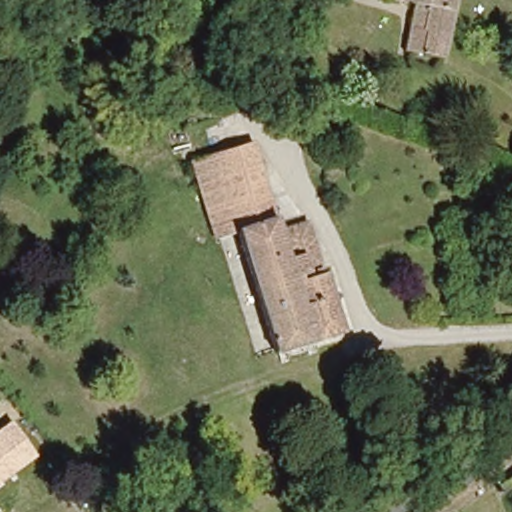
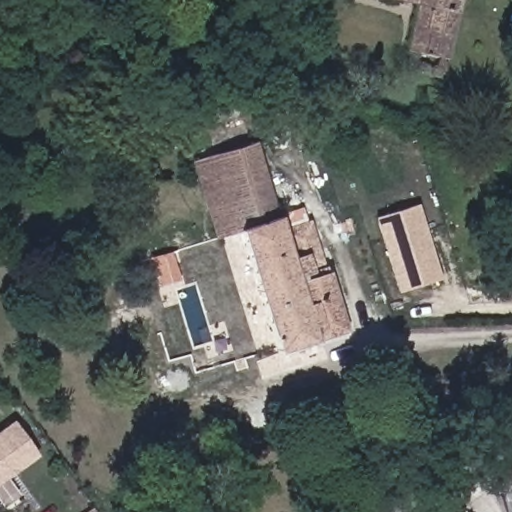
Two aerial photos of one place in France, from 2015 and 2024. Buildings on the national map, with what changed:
unchanged [(352,1),(352,0),(369,0),(368,3),(352,1)]
unchanged [(407,55),(414,8),(375,0),(450,0),(444,61),(407,55)]
unchanged [(317,340),(320,353),(313,354),(311,350),(293,356),(294,361),(286,363),(282,349),(274,352),(233,230),(213,237),(188,160),(251,140),(281,229),(312,219),(325,261),(314,266),(316,273),(300,279),(302,285),(322,279),(320,274),(329,270),(350,329),(317,340)]
new [(373,218),(417,204),(441,279),(398,293),(373,218)]
unchanged [(0,485),(0,428),(11,420),(39,457),(0,485)]

